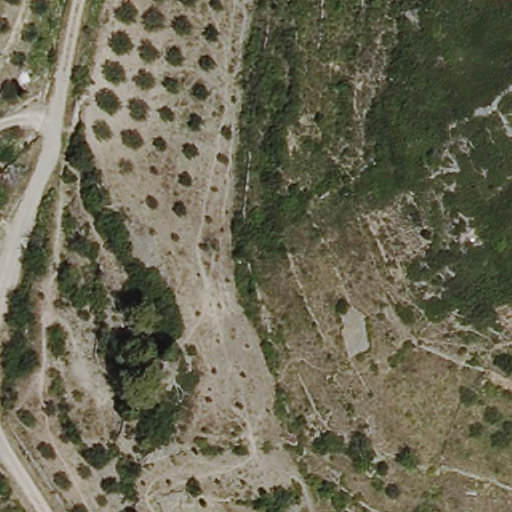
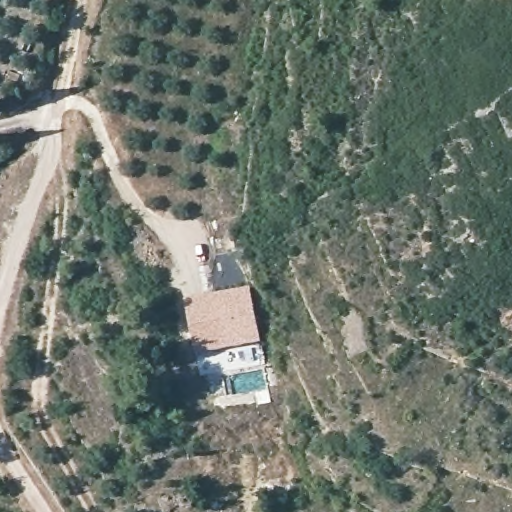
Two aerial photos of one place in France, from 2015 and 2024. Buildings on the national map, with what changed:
new [(250,288),(261,342),(197,355),(185,299),(250,288)]

